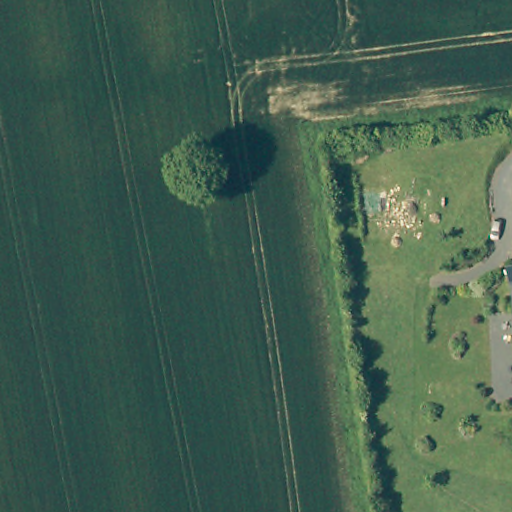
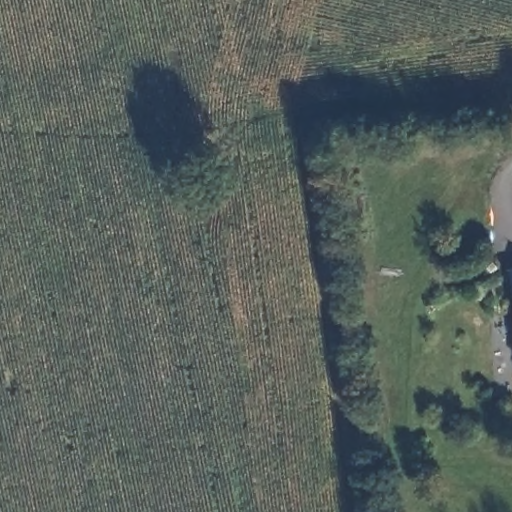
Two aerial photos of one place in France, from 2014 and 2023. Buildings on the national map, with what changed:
unchanged [(508,270),(512,270),(512,280),(508,270)]

